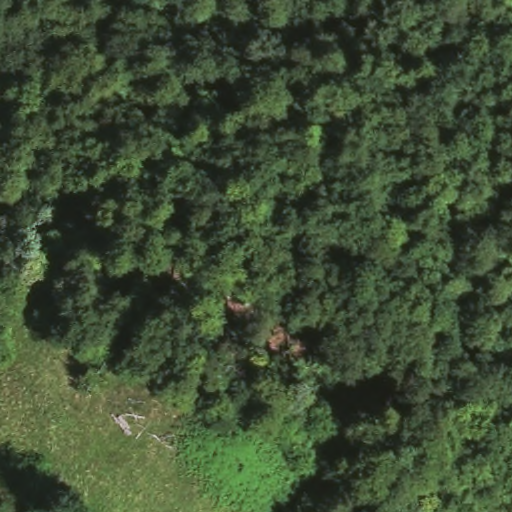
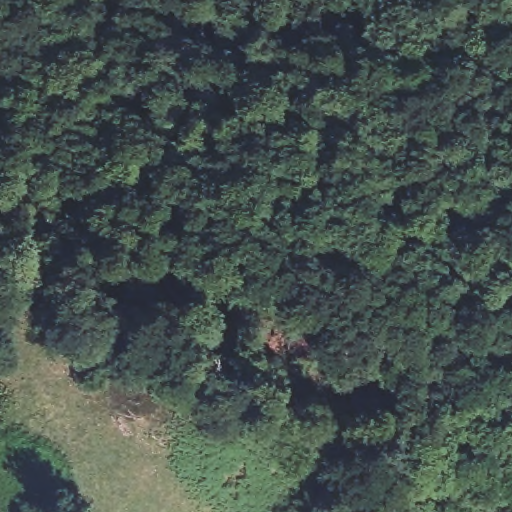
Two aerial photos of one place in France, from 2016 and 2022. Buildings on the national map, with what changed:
[]

